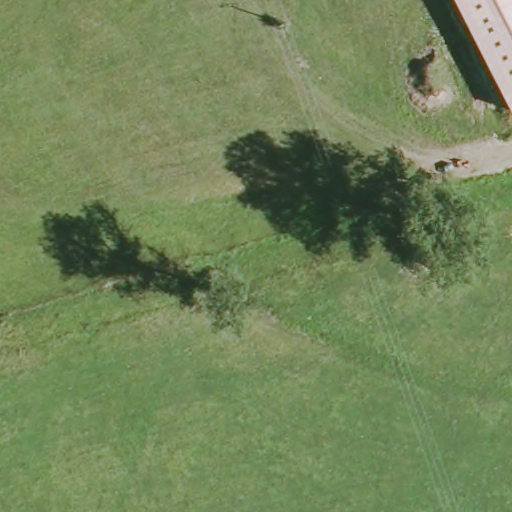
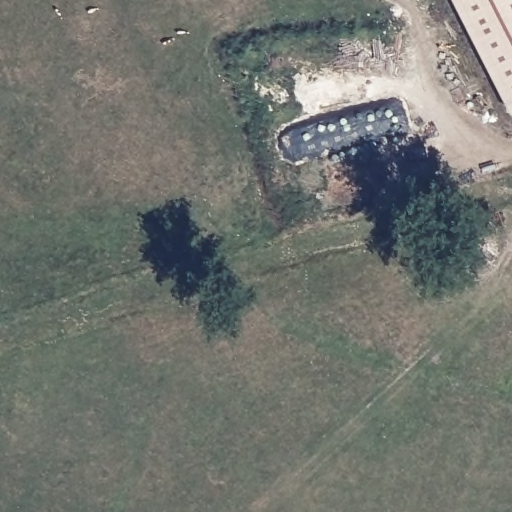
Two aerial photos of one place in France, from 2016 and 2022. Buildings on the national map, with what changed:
unchanged [(512,0),(512,111),(456,0),(512,0)]

